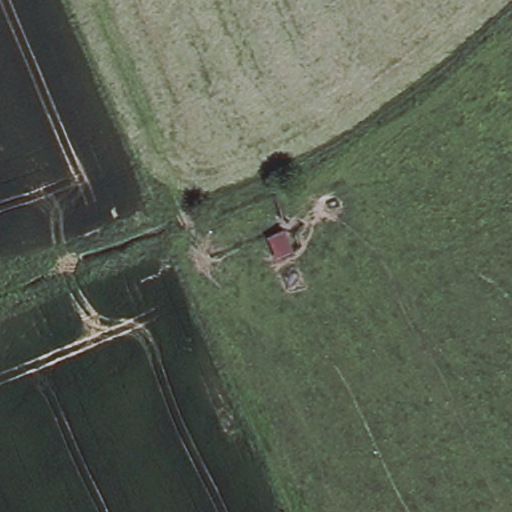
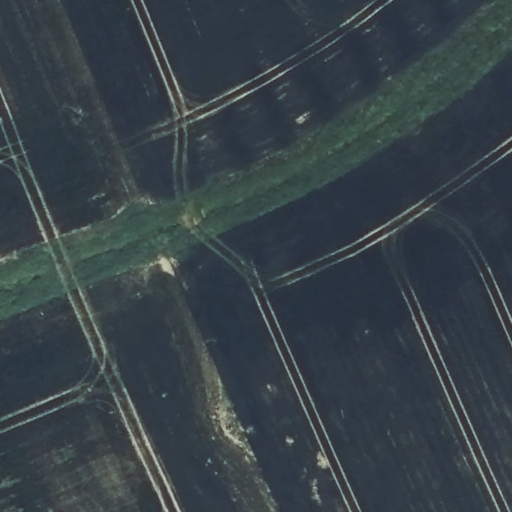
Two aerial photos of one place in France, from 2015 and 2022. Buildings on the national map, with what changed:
unchanged [(283,228),(295,252),(276,262),(265,237),(283,228)]

